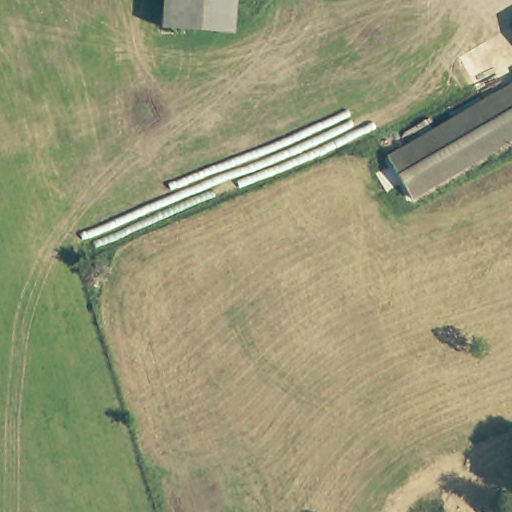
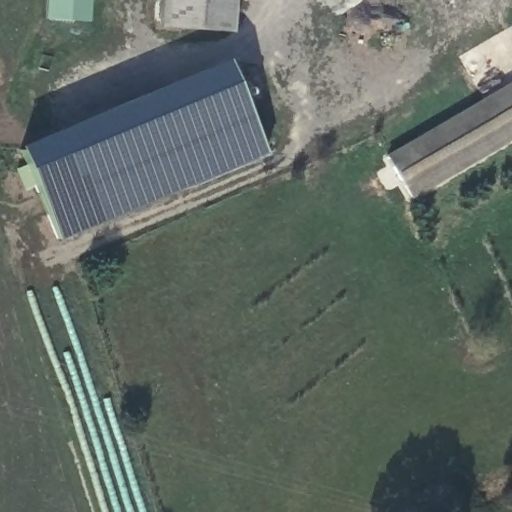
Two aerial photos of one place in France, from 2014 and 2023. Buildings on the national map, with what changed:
new [(45,20),(46,0),(88,0),(86,23),(45,20)]
unchanged [(231,0),(228,34),(158,30),(160,0),(231,0)]
new [(229,59),(264,151),(56,240),(20,144),(229,59)]
unchanged [(411,199),(385,155),(512,82),(512,140),(411,199)]

